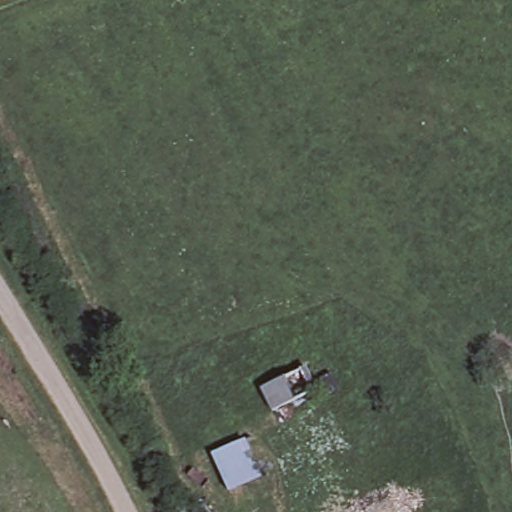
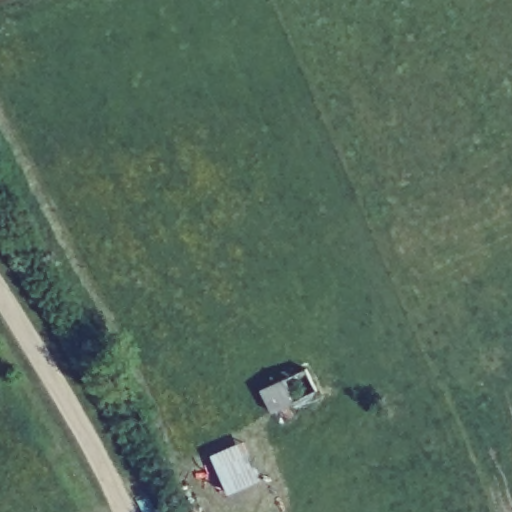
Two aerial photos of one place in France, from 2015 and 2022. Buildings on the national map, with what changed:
unchanged [(273,411),(263,387),(306,366),(317,391),(273,411)]
unchanged [(229,491),(222,476),(214,455),(276,432),(288,467),(264,477),(229,491)]

